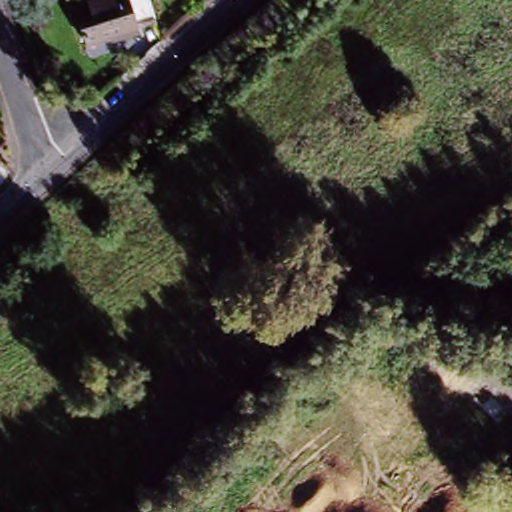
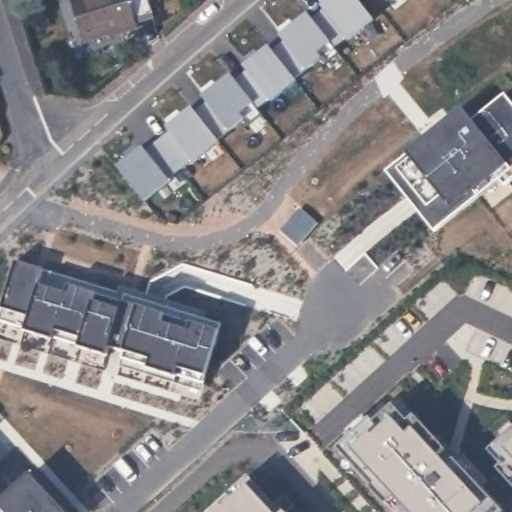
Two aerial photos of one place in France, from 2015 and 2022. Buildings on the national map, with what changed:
unchanged [(132,30),(115,35),(113,29),(77,40),(65,0),(123,0),(132,30)]
new [(347,38),(334,46),(339,53),(325,63),(322,56),(306,69),(307,71),(295,81),(270,100),(257,108),(262,115),(248,126),(245,119),(145,201),(117,167),(144,147),(148,153),(172,134),(167,127),(192,107),(197,114),(209,104),(203,97),(232,75),(237,82),(248,73),(243,66),(269,46),(273,52),(285,43),(280,36),(309,12),(314,20),(325,11),(320,5),(326,0),(360,0),(375,18),(347,38)]
new [(387,2),(386,0),(389,0),(387,2)]
new [(434,230),(390,173),(410,157),(407,153),(464,109),(473,120),(506,95),(512,102),(512,169),(434,230)]
new [(125,295),(223,325),(204,383),(178,376),(176,381),(147,372),(149,365),(120,357),(122,351),(110,348),(108,355),(26,330),(0,321),(0,314),(2,308),(15,261),(45,270),(125,295)]
demolished [(512,363),(512,373),(507,385),(491,382),(501,358),(512,363)]
demolished [(502,426),(465,459),(443,435),(440,431),(462,411),(476,398),(502,426)]
new [(375,422),(394,404),(408,421),(415,416),(444,451),(440,456),(449,466),(455,461),(497,506),(490,512),(399,512),(390,502),(387,505),(371,487),(373,485),(340,449),(370,418),(375,422)]
new [(498,468),(503,464),(490,450),(512,430),(512,483),(498,468)]
demolished [(465,459),(410,511),(387,487),(443,435),(465,459)]
demolished [(283,512),(237,512),(230,504),(219,493),(215,488),(257,449),(300,495),(283,512)]
demolished [(505,452),(512,459),(512,479),(476,512),(460,493),(505,452)]
new [(80,512),(0,512),(0,494),(4,499),(39,468),(80,512)]
new [(225,510),(249,486),(272,512),(216,512),(222,506),(225,510)]

